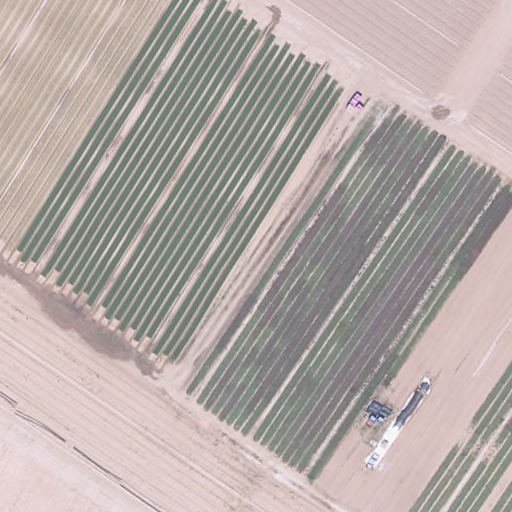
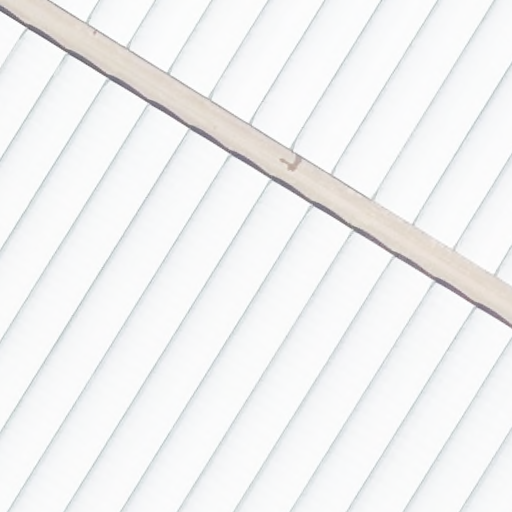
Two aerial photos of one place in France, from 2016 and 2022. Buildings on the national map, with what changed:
new [(512,288),(50,0),(512,0),(512,288)]
new [(512,330),(512,512),(0,512),(0,11),(512,330)]

